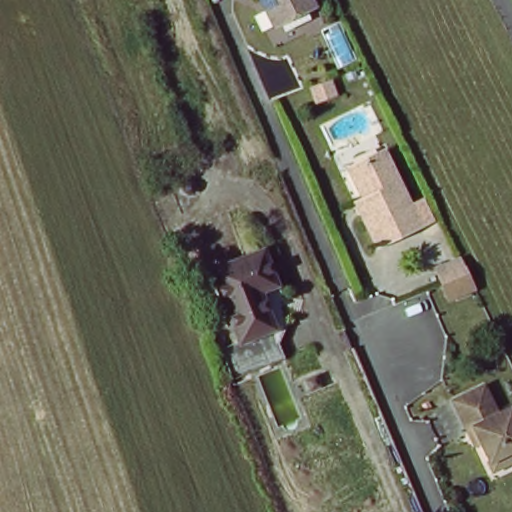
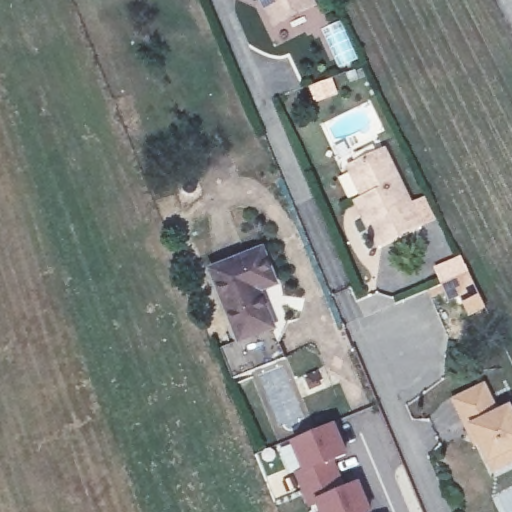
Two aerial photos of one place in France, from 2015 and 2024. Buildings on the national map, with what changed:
unchanged [(264,0),(314,0),(319,9),(285,26),(278,29),(265,2),(264,0)]
unchanged [(366,199),(352,168),(388,152),(424,227),(379,248),(363,215),(357,203),(366,199)]
unchanged [(213,269),(263,249),(278,283),(263,289),(278,326),(243,340),(213,269)]
unchanged [(438,274),(467,263),(480,295),(451,307),(438,274)]
unchanged [(293,359),(240,384),(225,347),(243,340),(278,326),(293,359)]
unchanged [(475,430),(459,400),(488,386),(502,415),(512,410),(512,462),(501,468),(487,442),(481,444),(475,430)]
new [(304,471),(290,442),(335,423),(349,456),(336,461),(348,488),(361,482),(372,512),(321,512),(318,504),(310,508),(295,474),(304,471)]

